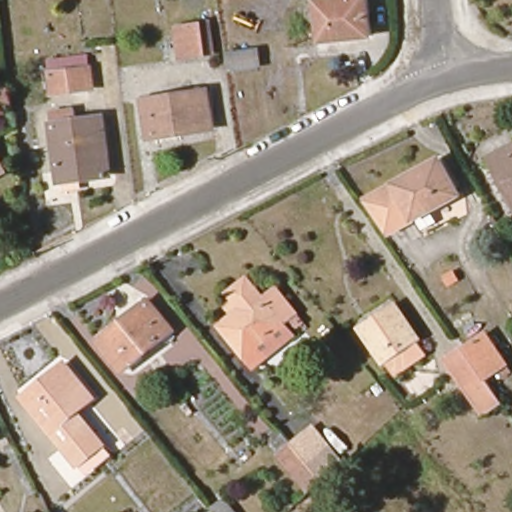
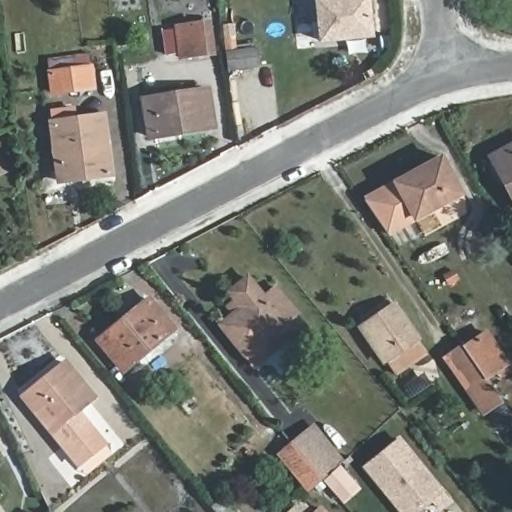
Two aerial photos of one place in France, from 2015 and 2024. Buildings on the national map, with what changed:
unchanged [(317,0),(368,0),(372,38),(334,41),(321,42),(320,30),(317,0)]
unchanged [(211,22),(214,55),(180,59),(177,26),(211,22)]
unchanged [(255,51),(257,67),(228,70),(228,66),(226,54),(255,51)]
unchanged [(92,90),(53,94),(50,73),(48,60),(68,57),(87,55),(92,90)]
unchanged [(209,90),(215,129),(149,139),(143,100),(209,90)]
unchanged [(110,176),(58,183),(51,122),(103,116),(110,176)]
unchanged [(491,157),(512,146),(512,197),(491,157)]
unchanged [(461,195),(414,220),(387,235),(362,198),(394,182),(441,158),(461,195)]
unchanged [(0,174),(0,162),(5,171),(0,174)]
unchanged [(224,326),(237,316),(231,309),(240,301),(234,294),(252,279),(268,299),(280,290),(299,312),(287,322),(297,335),(256,367),(224,326)]
unchanged [(148,301),(172,331),(121,371),(97,341),(148,301)]
unchanged [(395,307),(426,354),(392,376),(361,329),(395,307)]
unchanged [(474,308),(481,320),(460,332),(452,320),(474,308)]
unchanged [(486,334),(507,364),(487,378),(466,347),(486,334)]
unchanged [(460,348),(498,403),(498,404),(482,414),(444,358),(460,348)]
unchanged [(21,403),(63,368),(91,402),(74,415),(102,448),(77,469),(21,403)]
unchanged [(308,493),(277,454),(289,444),(303,433),(291,418),(301,410),(342,461),(335,468),(320,481),(308,493)]
new [(400,437),(445,493),(420,512),(398,512),(362,467),(400,437)]
new [(343,471),(360,490),(345,503),(328,484),(343,471)]
unchanged [(211,508),(223,499),(234,512),(215,512),(211,508)]
new [(321,505),(327,512),(313,512),(321,505)]

